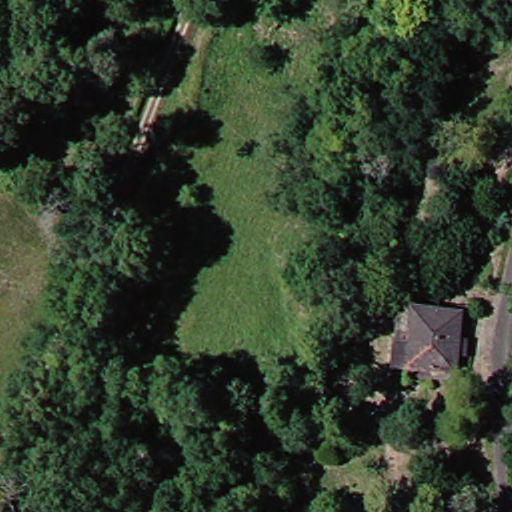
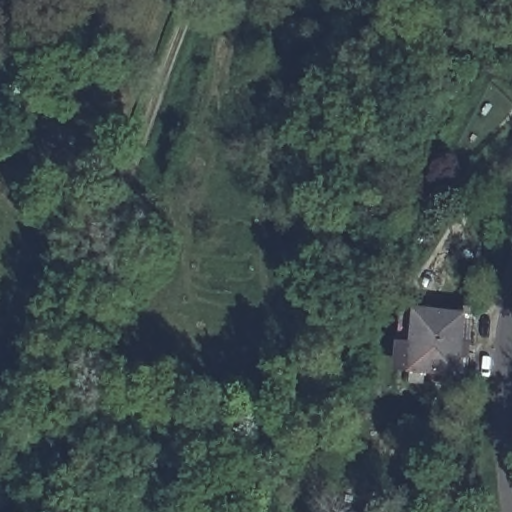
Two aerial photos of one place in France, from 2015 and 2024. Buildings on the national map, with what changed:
unchanged [(445,375),(397,373),(403,314),(450,316),(445,375)]

